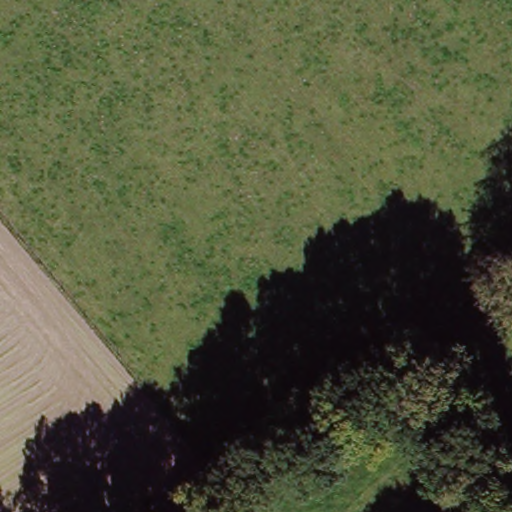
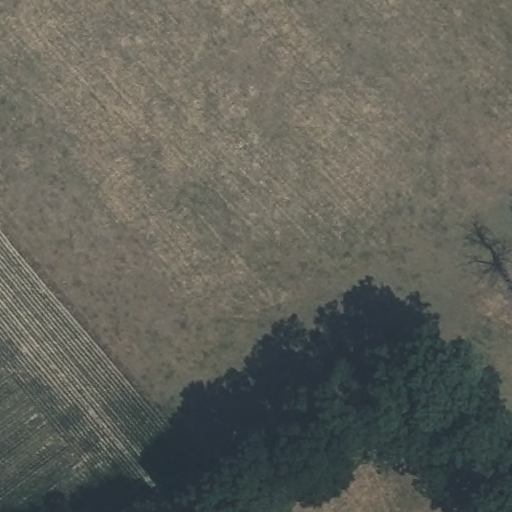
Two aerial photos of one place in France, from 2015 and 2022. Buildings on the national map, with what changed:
[]

